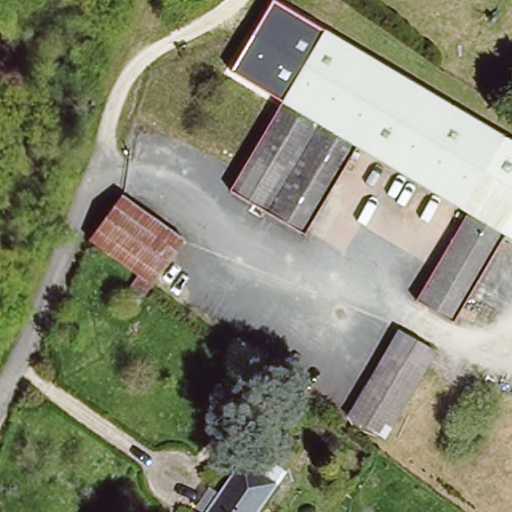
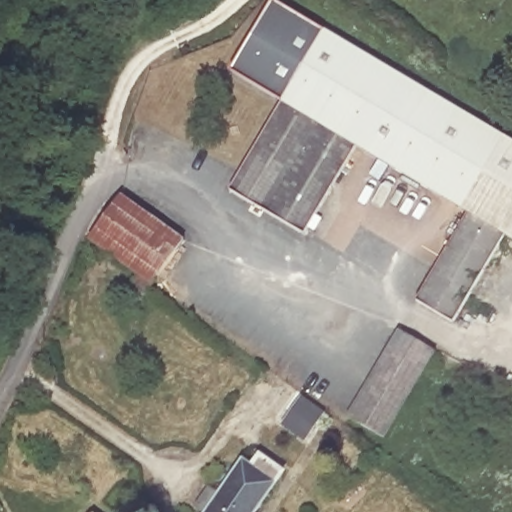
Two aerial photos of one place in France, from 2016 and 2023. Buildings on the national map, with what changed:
unchanged [(512,145),(512,246),(504,241),(450,327),(415,305),(469,219),(350,144),(295,232),(227,190),(284,102),(237,72),(280,2),(512,145)]
unchanged [(130,287),(144,268),(102,239),(126,194),(187,235),(157,278),(145,297),(130,287)]
unchanged [(399,332),(433,354),(380,438),(347,416),(399,332)]
unchanged [(269,470),(277,459),(294,471),(266,512),(224,512),(234,498),(257,462),(269,470)]

